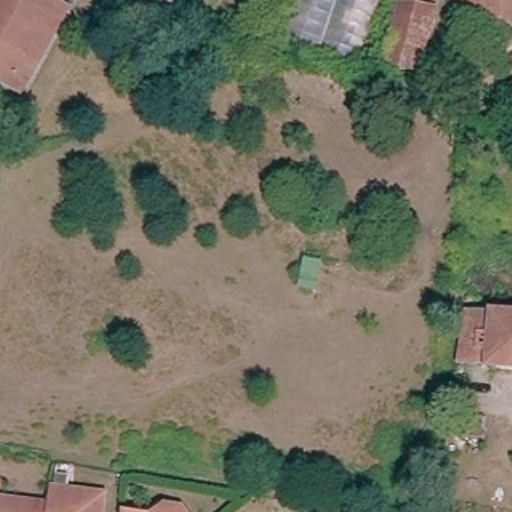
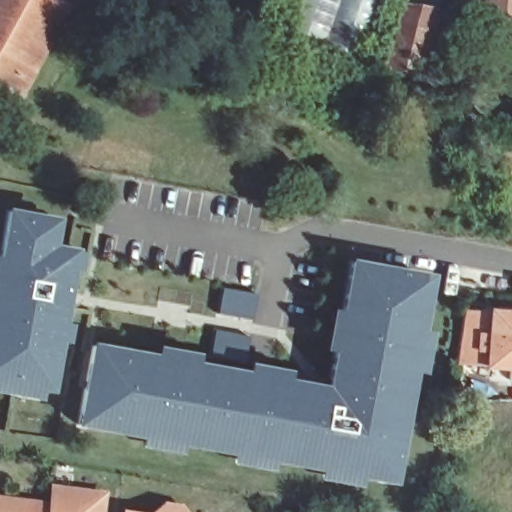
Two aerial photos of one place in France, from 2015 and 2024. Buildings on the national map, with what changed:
unchanged [(54,0),(71,9),(26,94),(0,81),(0,8),(4,0),(54,0)]
unchanged [(165,0),(193,0),(190,11),(165,0)]
unchanged [(381,0),(357,69),(279,40),(296,0),(381,0)]
unchanged [(386,61),(399,0),(439,0),(423,70),(386,61)]
unchanged [(512,0),(512,39),(503,39),(503,26),(458,23),(459,0),(512,0)]
new [(61,219),(57,244),(84,250),(81,272),(74,271),(66,322),(72,323),(67,345),(62,343),(52,393),(41,391),(39,400),(0,393),(0,250),(6,210),(61,219)]
new [(156,355),(157,347),(199,353),(197,363),(248,372),(250,362),(290,371),(288,381),(326,387),(332,352),(323,350),(331,309),(342,311),(349,260),(433,277),(423,332),(431,333),(423,376),(416,375),(395,486),(360,480),(358,488),(317,482),(317,472),(272,464),(271,473),(229,465),(231,457),(181,448),(179,457),(137,448),(139,437),(75,427),(91,344),(156,355)]
unchanged [(512,316),(512,367),(456,365),(458,348),(463,312),(512,316)]
unchanged [(42,511),(42,507),(56,508),(58,496),(95,501),(93,512),(42,512),(42,511)]
unchanged [(42,511),(42,512),(0,512),(0,506),(42,511)]

